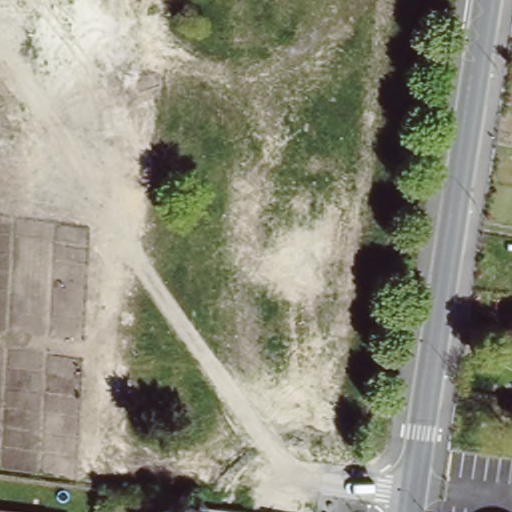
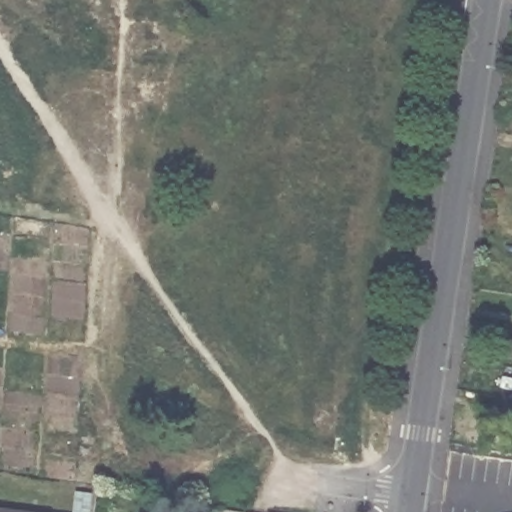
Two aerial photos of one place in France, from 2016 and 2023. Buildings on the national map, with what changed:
unchanged [(512,413),(505,412),(507,400),(512,400),(512,413)]
unchanged [(34,512),(0,512),(0,508),(34,512)]

